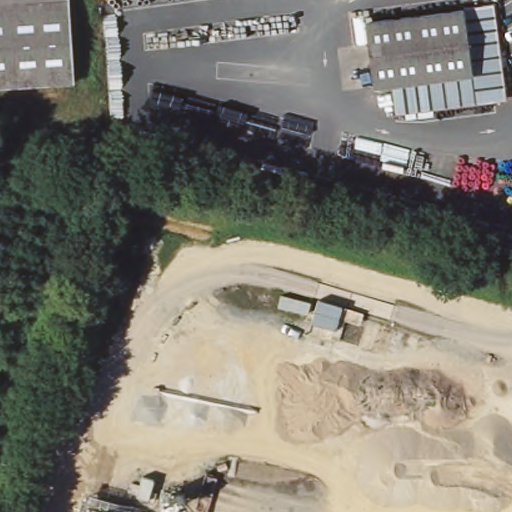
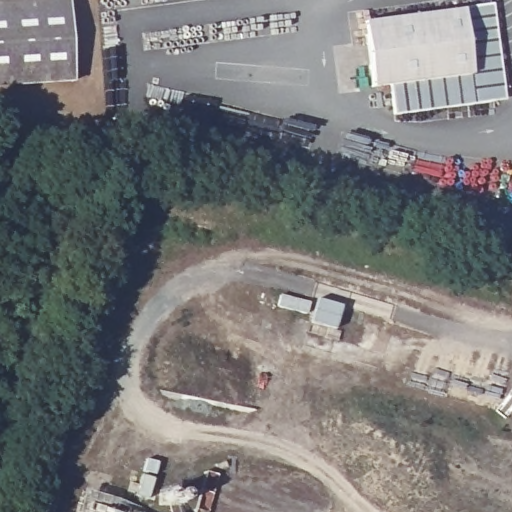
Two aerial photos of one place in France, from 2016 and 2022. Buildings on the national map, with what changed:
unchanged [(0,86),(0,0),(69,0),(74,81),(0,86)]
unchanged [(472,74),(463,10),(493,5),(505,101),(396,114),(390,86),(472,74)]
unchanged [(463,10),(472,74),(385,86),(387,99),(374,101),(364,22),(463,10)]

